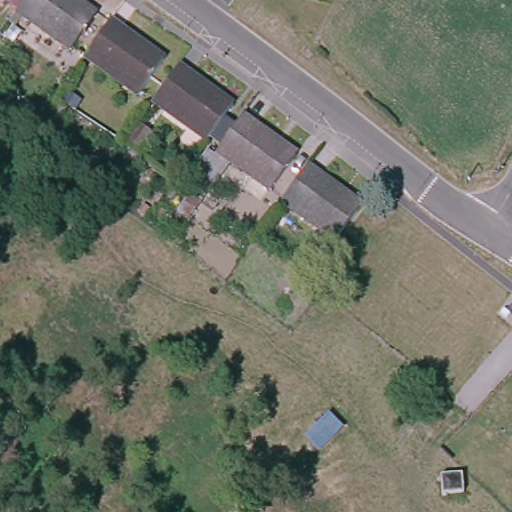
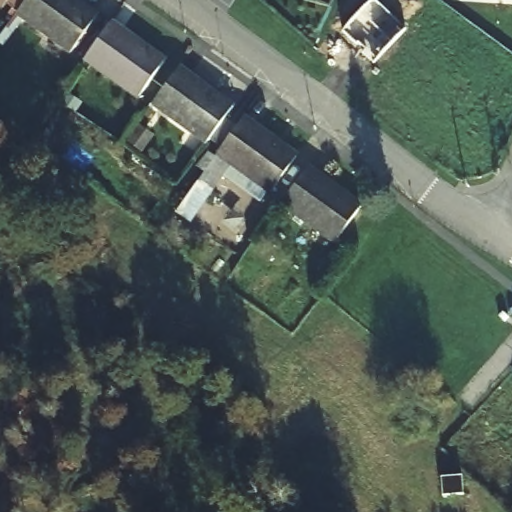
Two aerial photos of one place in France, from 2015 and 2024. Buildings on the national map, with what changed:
unchanged [(2,12),(0,10),(0,0),(11,0),(2,12)]
unchanged [(26,0),(76,0),(96,15),(70,51),(18,12),(26,0)]
new [(361,54),(365,50),(343,31),(372,0),(373,0),(403,30),(373,63),(361,54)]
unchanged [(111,22),(165,60),(138,96),(85,57),(111,22)]
unchanged [(177,66),(232,108),(206,143),(150,103),(177,66)]
unchanged [(242,118),(296,156),(270,192),(217,153),(242,118)]
unchanged [(301,173),(355,212),(330,246),(277,207),(301,173)]
unchanged [(441,478),(461,476),(462,495),(442,497),(441,478)]

